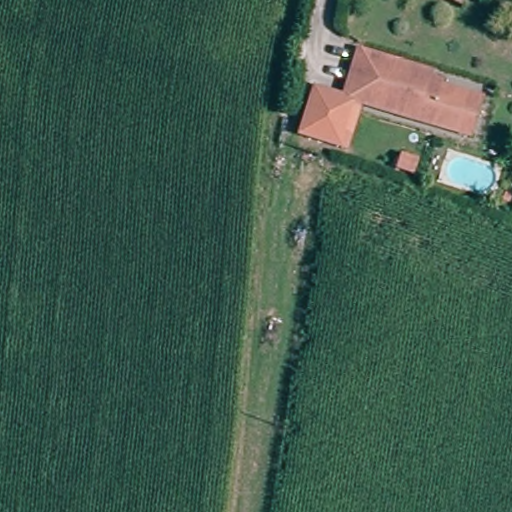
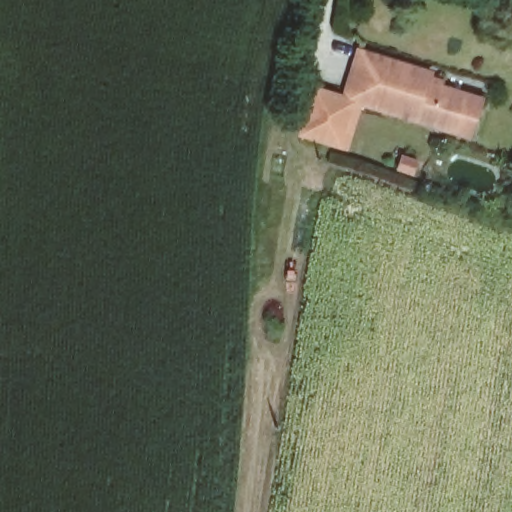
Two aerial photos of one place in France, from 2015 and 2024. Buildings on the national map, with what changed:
unchanged [(463,133),(423,121),(362,102),(348,146),(326,139),(309,134),(311,127),(323,90),(349,98),(355,99),(369,53),(431,72),(438,74),(435,84),(474,96),(488,100),(477,137),(463,133)]

